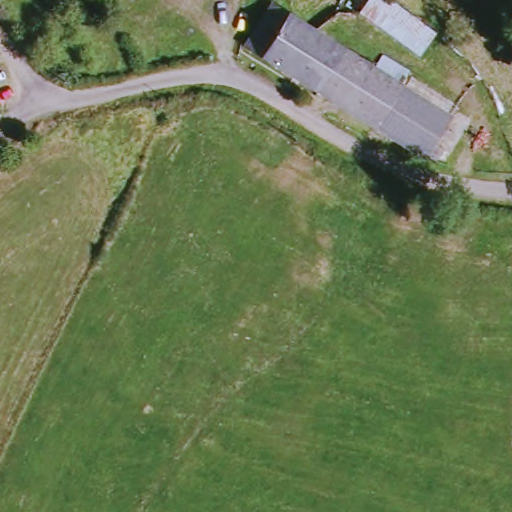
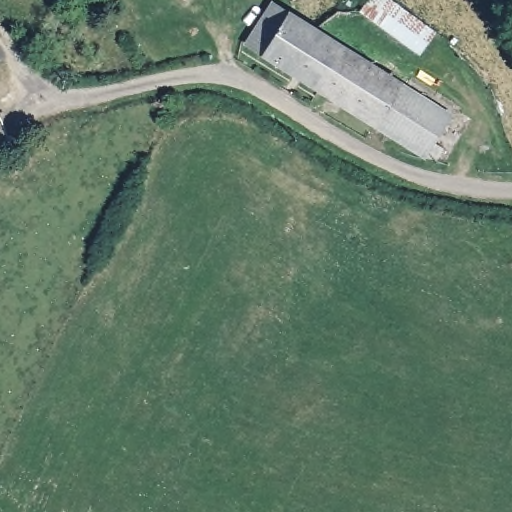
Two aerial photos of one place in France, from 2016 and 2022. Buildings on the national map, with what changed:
unchanged [(421,52),(362,9),(368,0),(395,0),(437,30),(421,52)]
unchanged [(247,45),(273,2),(377,68),(387,56),(462,104),(441,141),(455,149),(446,163),(411,155),(247,45)]

